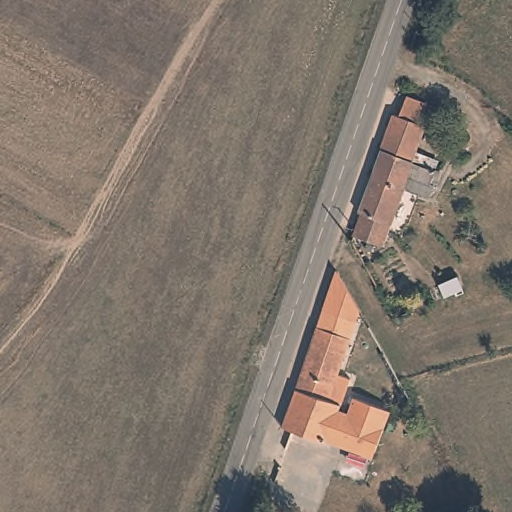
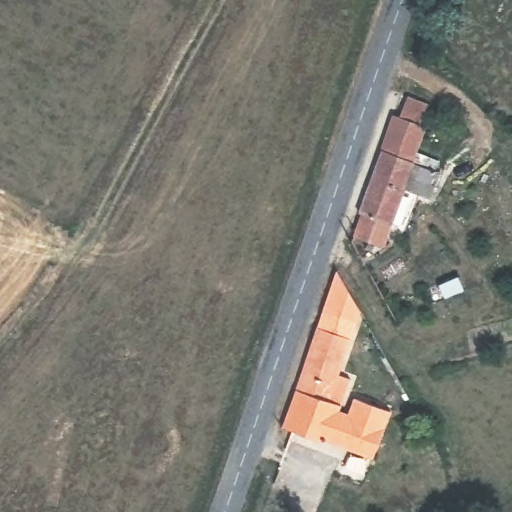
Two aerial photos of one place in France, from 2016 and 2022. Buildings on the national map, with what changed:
unchanged [(440,168),(430,194),(404,184),(383,241),(356,231),(362,209),(358,208),(394,110),(400,112),(407,92),(428,100),(420,120),(425,121),(416,147),(430,153),(426,163),(440,168)]
unchanged [(371,247),(366,244),(369,238),(374,242),(371,247)]
unchanged [(318,328),(324,310),(337,272),(360,311),(343,360),(356,364),(341,406),(296,391),(318,328)]
unchanged [(462,291),(445,298),(439,285),(456,278),(462,291)]
unchanged [(296,391),(341,406),(340,411),(328,440),(285,425),(296,391)]
unchanged [(390,411),(373,457),(328,440),(340,411),(348,415),(355,399),(390,411)]

